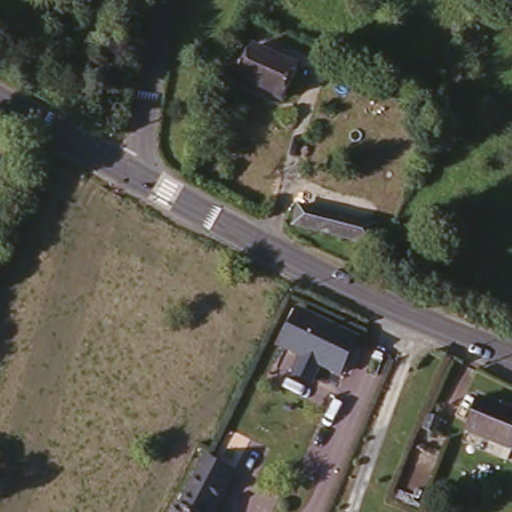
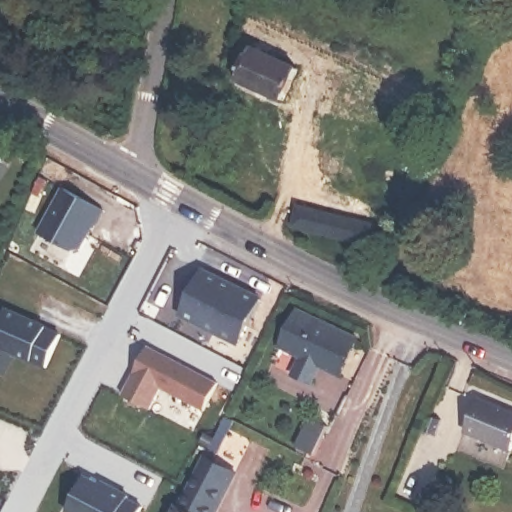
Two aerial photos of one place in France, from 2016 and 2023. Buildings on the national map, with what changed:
unchanged [(303,62),(288,93),(244,72),(259,40),(303,62)]
new [(75,249),(41,232),(65,187),(97,207),(75,249)]
unchanged [(364,249),(290,230),(295,211),(343,223),(346,205),(368,211),(364,228),(370,230),(364,249)]
new [(201,265),(260,295),(239,338),(180,310),(201,265)]
new [(60,330),(43,365),(0,345),(0,317),(5,304),(60,330)]
unchanged [(346,376),(321,365),(311,384),(290,375),(299,356),(279,345),(298,306),(363,338),(346,376)]
new [(213,380),(192,422),(121,387),(142,345),(213,380)]
unchanged [(512,418),(512,452),(510,455),(465,435),(478,403),(512,418)]
new [(316,455),(298,446),(315,410),(332,417),(316,455)]
unchanged [(449,423),(442,440),(430,435),(437,419),(449,423)]
unchanged [(176,498),(183,485),(185,485),(203,452),(234,468),(212,510),(217,512),(168,512),(175,498),(176,498)]
new [(142,500),(137,512),(63,512),(62,511),(81,471),(142,500)]

